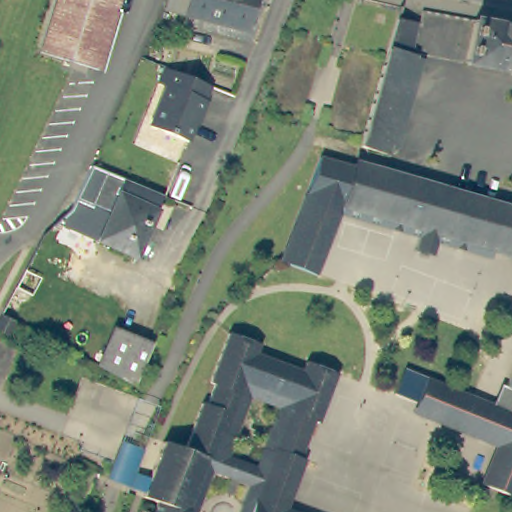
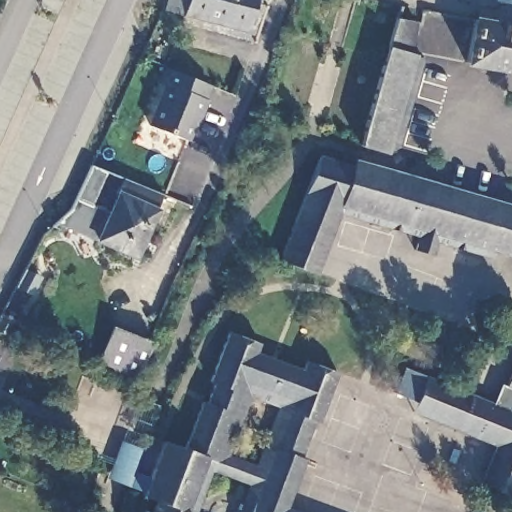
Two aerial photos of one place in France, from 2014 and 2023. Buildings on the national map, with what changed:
demolished [(46,51),(60,0),(122,0),(104,67),(46,51)]
unchanged [(172,6),(174,0),(258,0),(250,27),(172,6)]
unchanged [(398,144),(386,152),(361,143),(387,47),(396,15),(420,22),(412,52),(425,55),(398,144)]
unchanged [(512,30),(512,75),(462,66),(470,22),(512,30)]
unchanged [(211,94),(215,95),(208,111),(206,110),(195,139),(157,124),(173,82),(166,80),(171,65),(216,82),(211,94)]
unchanged [(301,202),(316,151),(351,161),(339,204),(336,213),(301,202)]
unchanged [(512,206),(512,253),(491,247),(449,236),(339,204),(351,161),(512,206)]
unchanged [(166,192),(142,256),(70,226),(64,222),(76,215),(97,166),(106,169),(166,192)]
unchanged [(326,264),(322,277),(283,266),(287,250),(301,202),(336,213),(340,214),(326,264)]
unchanged [(488,257),(437,242),(433,252),(415,247),(418,237),(340,214),(336,213),(339,204),(449,236),(491,247),(488,257)]
unchanged [(18,303),(14,312),(2,307),(7,297),(18,303)]
unchanged [(0,334),(0,314),(14,321),(6,337),(0,334)]
unchanged [(149,373),(144,387),(106,365),(117,326),(152,339),(149,347),(149,373)]
unchanged [(160,504),(147,498),(168,446),(189,453),(207,408),(214,407),(220,390),(216,382),(236,335),(267,346),(262,355),(307,373),(311,363),(343,376),(325,425),(318,422),(303,460),(307,462),(308,467),(291,508),(299,512),(242,512),(254,483),(217,469),(199,512),(157,512),(160,504)]
unchanged [(471,395),(502,407),(510,386),(507,385),(512,373),(512,493),(485,482),(498,443),(458,428),(471,395)]
unchanged [(458,428),(415,412),(427,378),(471,395),(458,428)]

